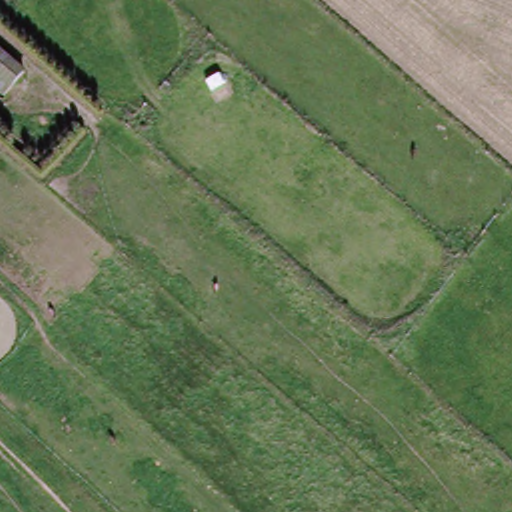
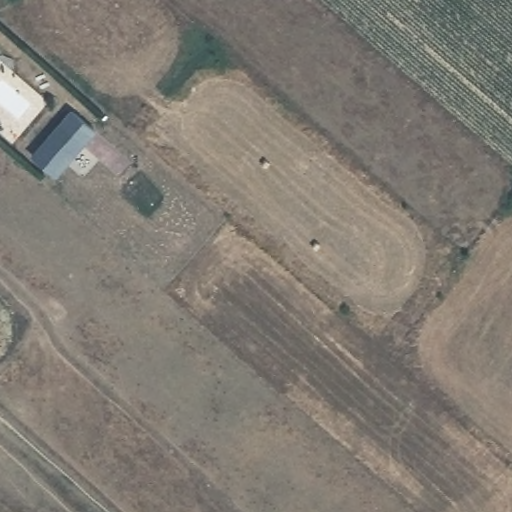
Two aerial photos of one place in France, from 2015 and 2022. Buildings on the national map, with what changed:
demolished [(8,92),(0,84),(0,43),(29,69),(8,92)]
new [(56,178),(30,155),(70,109),(96,132),(56,178)]

